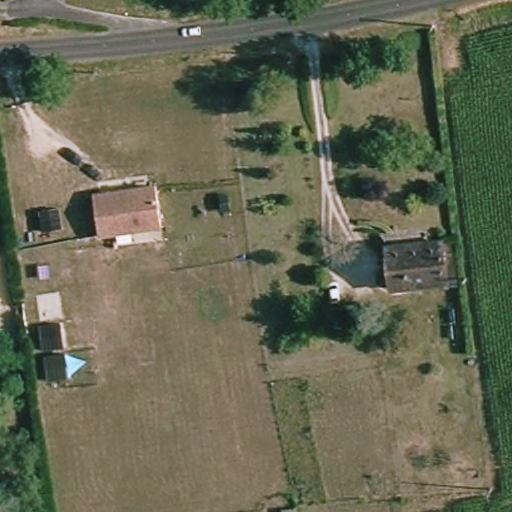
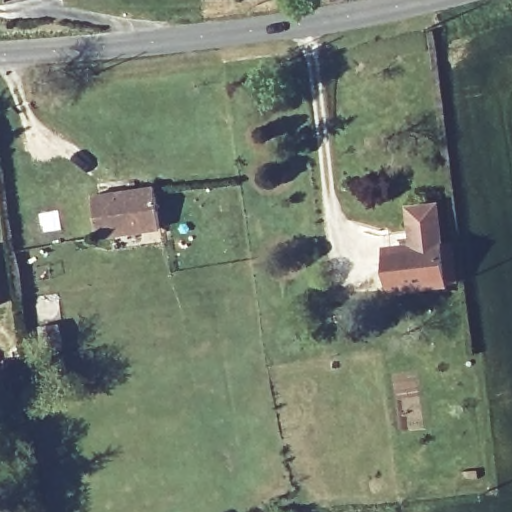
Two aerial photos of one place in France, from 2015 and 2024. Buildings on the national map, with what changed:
unchanged [(162,229),(100,237),(94,192),(156,185),(162,229)]
new [(441,241),(420,243),(418,249),(411,250),(407,207),(437,203),(441,241)]
unchanged [(382,254),(418,249),(420,243),(441,241),(446,279),(388,290),(382,254)]

